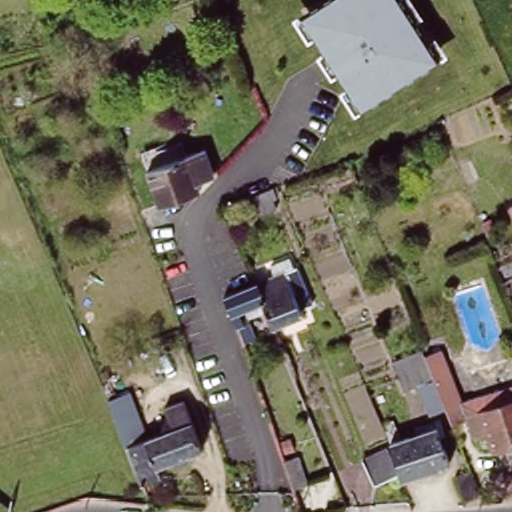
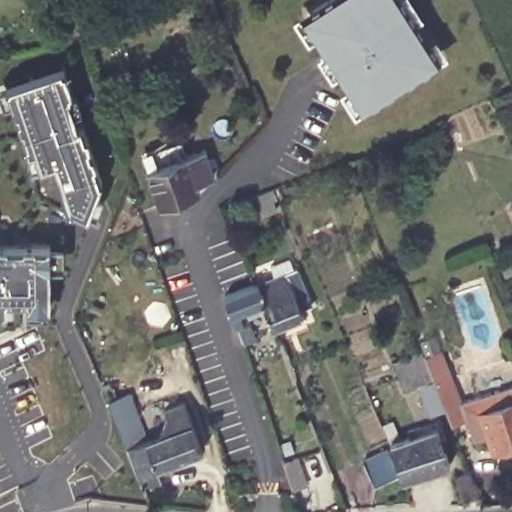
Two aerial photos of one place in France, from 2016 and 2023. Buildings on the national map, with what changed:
unchanged [(361,108),(302,15),(326,0),(401,0),(439,59),(361,108)]
new [(54,159),(38,163),(34,149),(28,150),(25,141),(26,140),(22,128),(20,128),(16,118),(18,115),(18,112),(14,111),(6,87),(9,84),(58,67),(62,69),(69,89),(67,91),(68,94),(66,95),(75,124),(79,123),(83,135),(86,135),(89,144),(87,146),(89,153),(92,154),(95,162),(93,164),(99,179),(86,212),(69,205),(54,159)]
unchanged [(194,188),(155,203),(141,168),(181,154),(194,188)]
unchanged [(512,208),(512,222),(507,211),(512,208)]
new [(5,312),(0,312),(0,243),(48,243),(49,266),(48,305),(26,306),(26,299),(5,299),(5,312)]
unchanged [(248,327),(236,332),(223,299),(254,287),(294,270),(311,308),(300,313),(303,319),(274,332),(260,306),(243,313),(248,327)]
unchanged [(257,328),(261,337),(240,346),(237,337),(257,328)]
unchanged [(447,410),(431,416),(421,389),(407,394),(402,380),(399,369),(427,360),(436,383),(442,399),(447,410)]
unchanged [(442,399),(458,393),(462,407),(512,390),(512,449),(493,454),(487,439),(472,444),(464,423),(453,427),(447,410),(442,399)]
unchanged [(108,403),(128,394),(146,441),(170,432),(163,413),(183,404),(201,452),(158,469),(161,479),(141,487),(108,403)]
unchanged [(364,458),(390,449),(389,448),(409,441),(408,434),(434,425),(449,468),(401,484),(399,479),(374,486),(364,458)]
unchanged [(281,456),(296,451),(306,479),(291,484),(281,456)]
unchanged [(454,476),(469,470),(481,498),(466,503),(454,476)]

